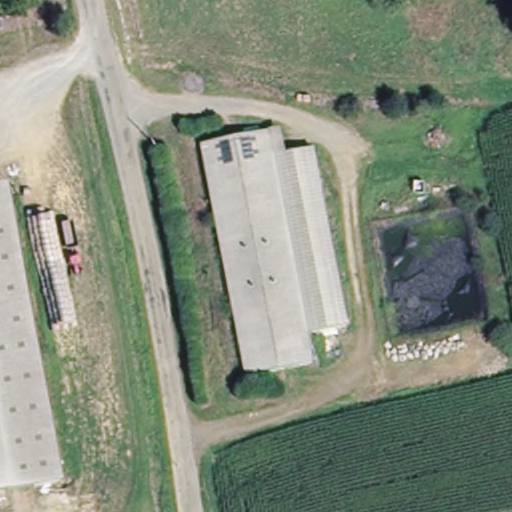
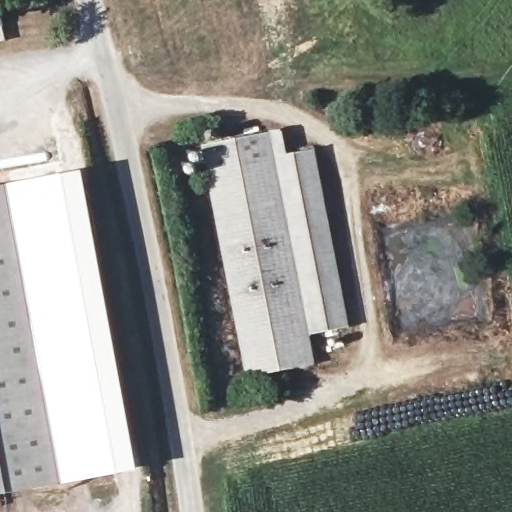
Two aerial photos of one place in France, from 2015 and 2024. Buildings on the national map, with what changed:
unchanged [(249,180),(208,187),(200,147),(266,134),(272,164),(312,157),(314,167),(249,180)]
unchanged [(345,327),(305,337),(310,367),(245,377),(208,187),(249,180),(314,167),(345,327)]
new [(57,486),(6,191),(85,171),(138,470),(57,486)]
unchanged [(6,191),(57,486),(0,496),(0,192),(6,191)]

